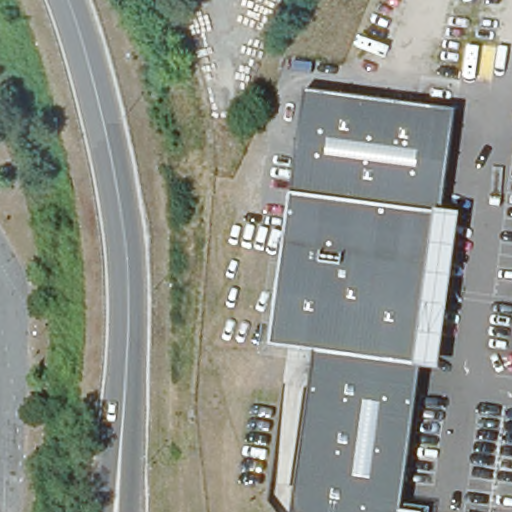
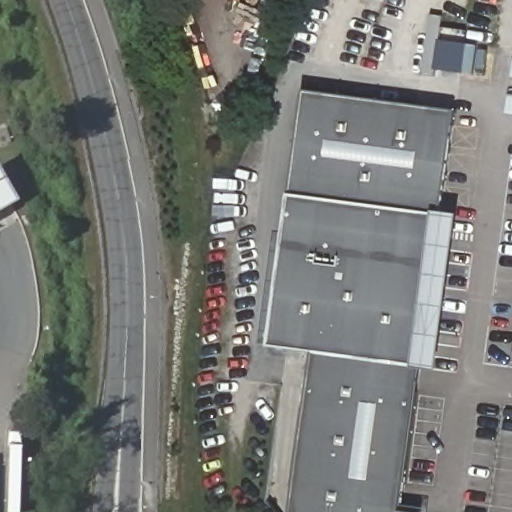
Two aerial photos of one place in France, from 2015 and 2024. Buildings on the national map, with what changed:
unchanged [(308,92),(457,112),(423,367),(317,353),(271,347),(308,92)]
new [(0,165),(19,200),(0,210),(0,165)]
unchanged [(317,353),(423,367),(403,512),(392,512),(296,498),(317,353)]
unchanged [(296,498),(392,512),(294,512),(296,498)]

